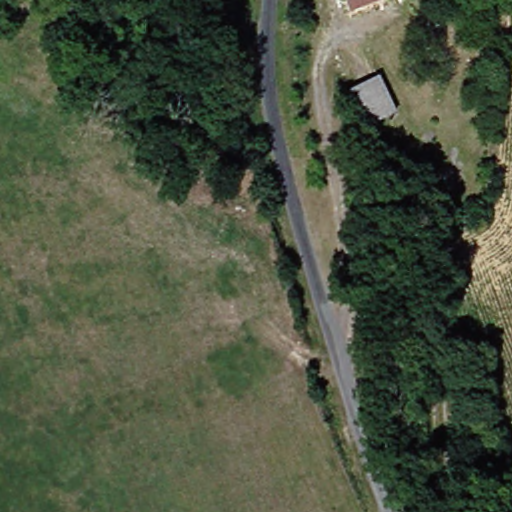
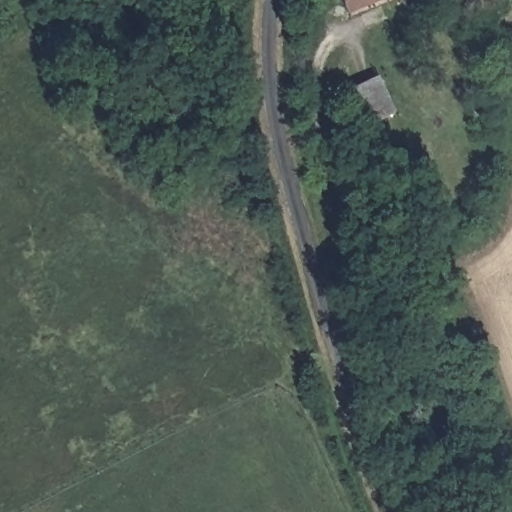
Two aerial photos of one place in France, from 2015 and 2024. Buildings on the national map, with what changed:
unchanged [(350,0),(377,0),(353,9),(350,0)]
unchanged [(367,126),(354,89),(386,76),(399,115),(367,126)]

